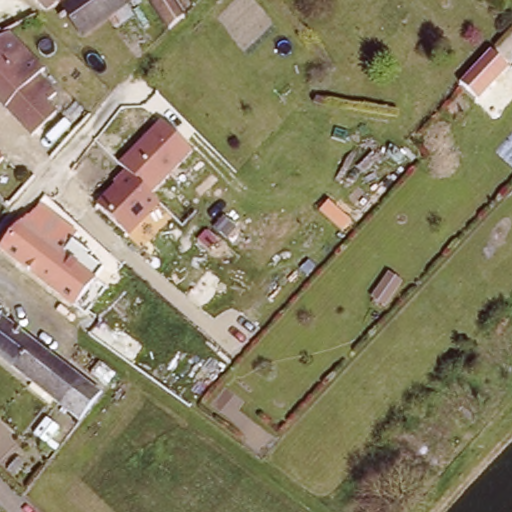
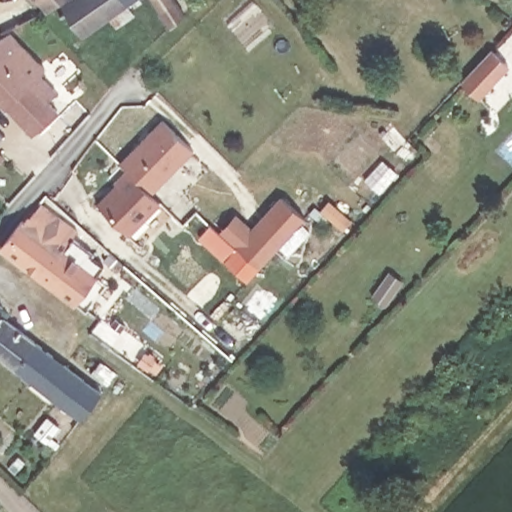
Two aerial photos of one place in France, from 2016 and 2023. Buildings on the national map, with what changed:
unchanged [(50,12),(39,0),(80,0),(67,10),(63,4),(50,12)]
unchanged [(86,38),(67,10),(80,0),(125,0),(130,8),(86,38)]
unchanged [(130,8),(125,0),(140,0),(130,8)]
unchanged [(150,0),(178,0),(185,11),(168,29),(150,0)]
unchanged [(512,3),(509,0),(512,0),(512,3)]
unchanged [(18,33),(8,39),(0,44),(0,19),(5,16),(7,19),(25,13),(36,22),(18,33)]
unchanged [(40,82),(6,114),(0,106),(0,44),(8,39),(44,79),(40,82)]
unchanged [(45,109),(52,120),(30,143),(6,114),(40,82),(55,102),(45,109)]
unchanged [(193,149),(149,195),(160,202),(130,235),(93,204),(125,170),(120,163),(162,119),(193,149)]
unchanged [(0,161),(0,145),(8,154),(0,161)]
new [(247,283),(197,239),(209,225),(218,232),(235,213),(251,227),(279,196),(304,218),(247,283)]
unchanged [(72,302),(3,249),(41,205),(77,233),(71,239),(89,253),(81,263),(97,277),(72,302)]
unchanged [(0,358),(0,297),(8,303),(0,314),(97,393),(82,413),(76,420),(0,358)]

